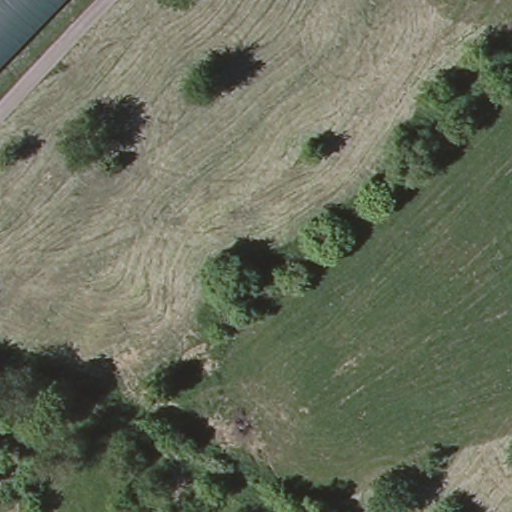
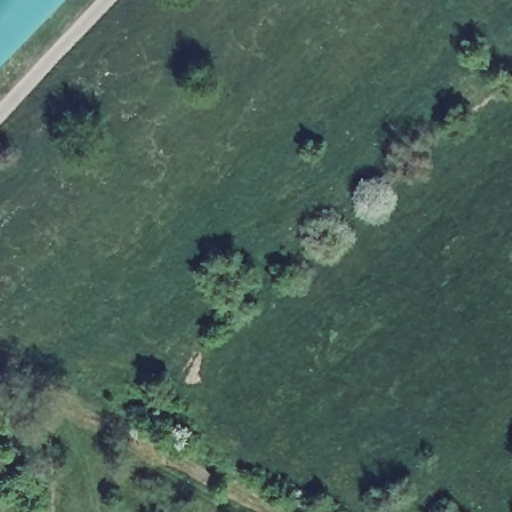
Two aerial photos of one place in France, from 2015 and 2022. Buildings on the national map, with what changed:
unchanged [(0,0),(61,0),(0,62),(0,0)]

